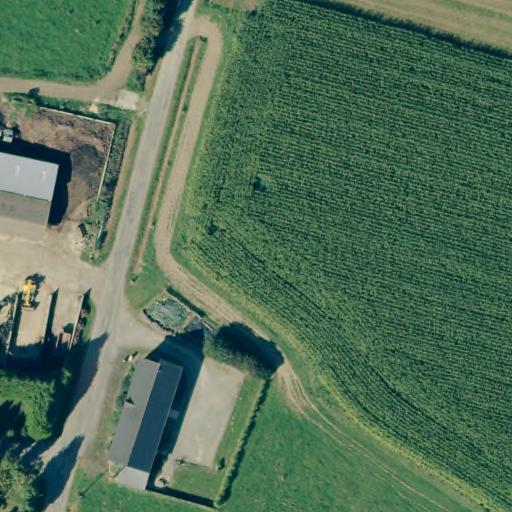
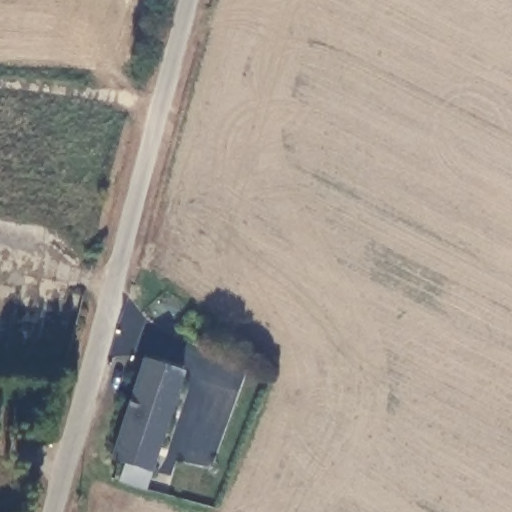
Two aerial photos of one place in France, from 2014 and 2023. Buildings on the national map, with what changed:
demolished [(54,167),(40,232),(0,223),(0,155),(54,167)]
unchanged [(115,456),(111,454),(140,353),(180,365),(179,371),(151,466),(149,478),(147,487),(122,479),(126,458),(115,456)]

